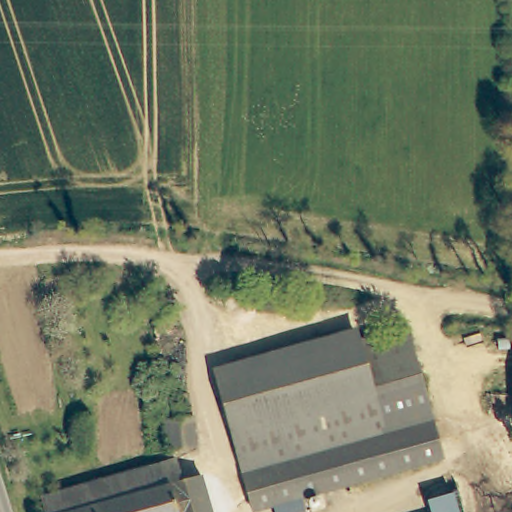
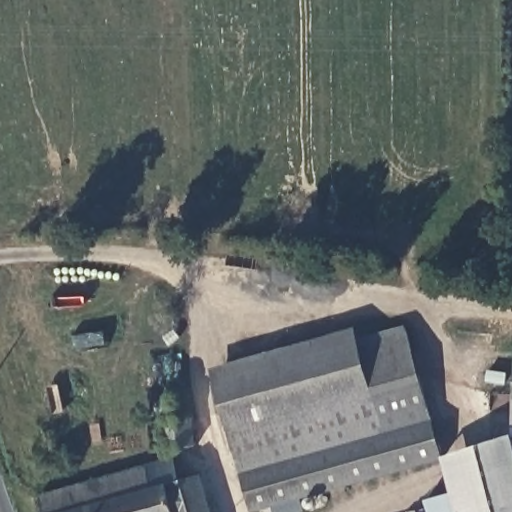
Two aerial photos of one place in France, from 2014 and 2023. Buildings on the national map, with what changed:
unchanged [(302,512),(274,512),(272,506),(252,512),(211,366),(356,327),(368,356),(408,343),(442,459),(301,498),(305,511),(302,512)]
unchanged [(164,424),(166,420),(165,414),(162,388),(165,384),(169,381),(177,381),(182,385),(187,390),(189,403),(197,446),(169,452),(164,424)]
new [(444,456),(512,434),(512,512),(458,512),(444,456)]
unchanged [(38,496),(148,465),(175,459),(181,480),(202,476),(212,512),(43,512),(38,496)]
unchanged [(425,495),(450,488),(457,512),(430,512),(425,495)]

